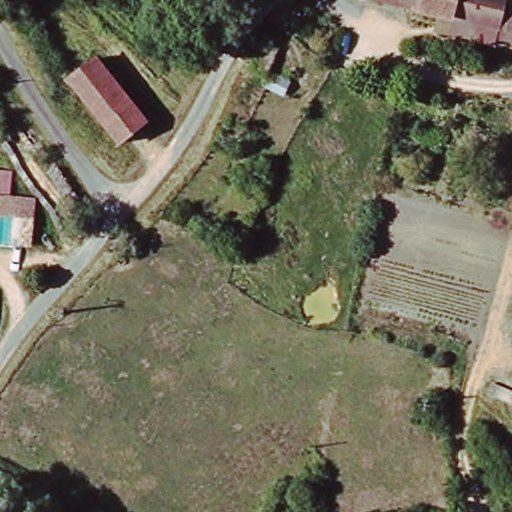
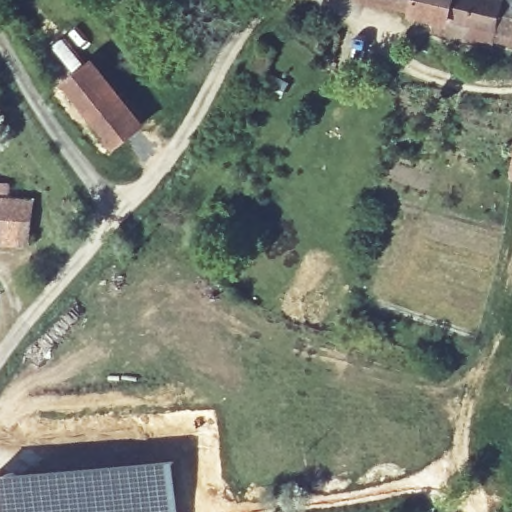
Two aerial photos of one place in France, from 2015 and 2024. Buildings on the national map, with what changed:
unchanged [(492,46),(433,30),(437,9),(400,0),(512,0),(512,43),(494,39),(492,46)]
unchanged [(140,120),(112,141),(64,76),(92,53),(140,120)]
unchanged [(12,170),(9,194),(0,193),(0,169),(12,170)]
unchanged [(37,197),(35,220),(0,216),(0,193),(37,197)]
unchanged [(35,220),(32,247),(0,244),(0,216),(35,220)]
new [(82,460),(177,455),(182,512),(0,512),(0,469),(82,460)]

